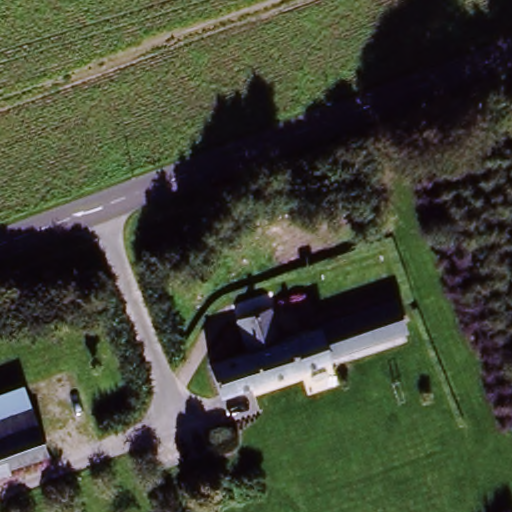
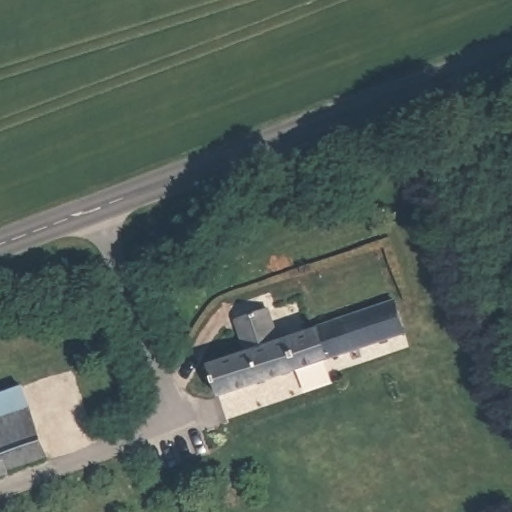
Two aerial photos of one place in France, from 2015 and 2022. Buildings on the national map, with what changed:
unchanged [(317,332),(389,308),(399,336),(326,362),(317,332)]
unchanged [(235,327),(268,316),(278,346),(245,357),(235,327)]
unchanged [(278,346),(317,332),(326,362),(215,400),(205,371),(245,357),(278,346)]
unchanged [(27,391),(39,429),(0,442),(0,399),(27,391)]
unchanged [(39,429),(47,457),(0,474),(0,442),(39,429)]

